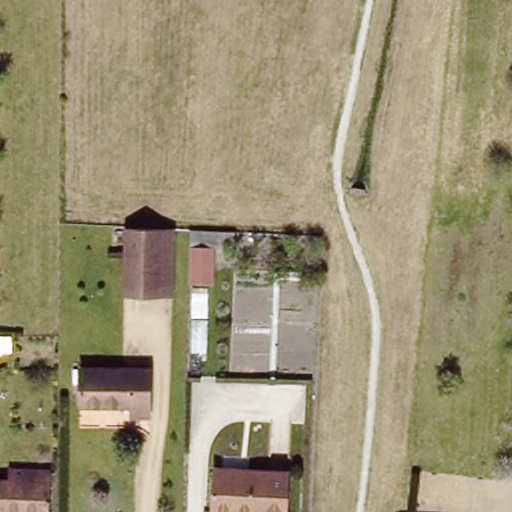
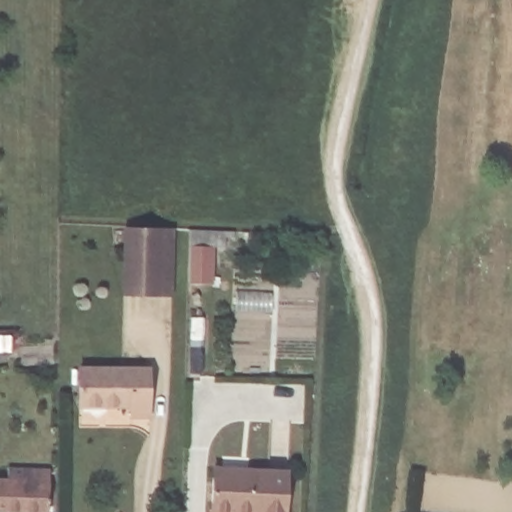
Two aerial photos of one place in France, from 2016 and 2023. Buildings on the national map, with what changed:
unchanged [(171,295),(159,294),(122,292),(122,225),(160,227),(171,228),(171,295)]
unchanged [(230,231),(230,247),(215,246),(213,284),(187,281),(190,229),(230,231)]
unchanged [(155,366),(152,414),(132,412),(133,403),(80,399),(82,361),(155,366)]
unchanged [(0,510),(0,477),(10,478),(10,467),(48,468),(47,510),(0,510)]
unchanged [(262,512),(262,510),(214,508),(215,467),(289,471),(288,512),(262,512)]
unchanged [(449,509),(449,512),(405,512),(405,508),(449,509)]

